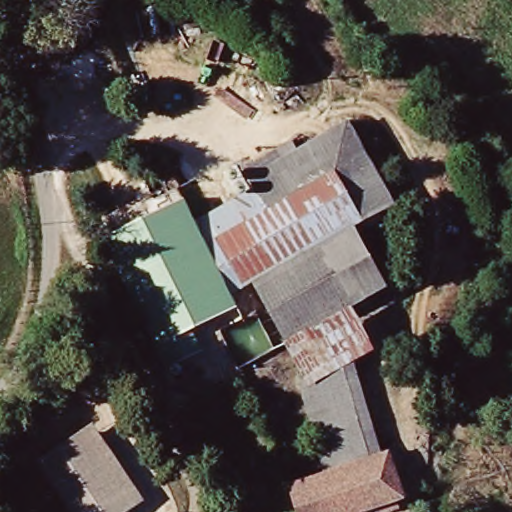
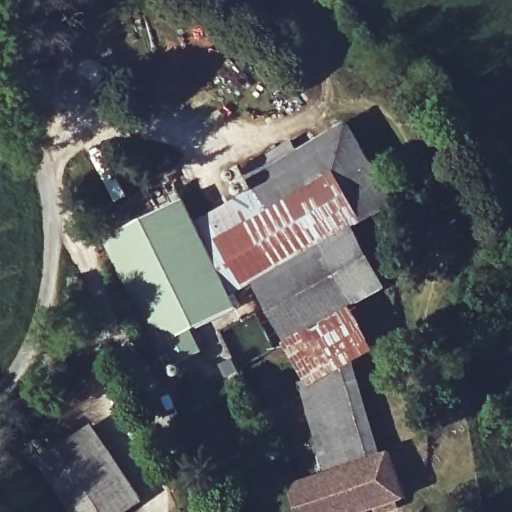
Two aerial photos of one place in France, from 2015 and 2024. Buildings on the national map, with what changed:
unchanged [(394,224),(322,260),(374,363),(304,397),(257,301),(241,310),(220,260),(231,253),(218,229),(270,205),(266,194),(357,151),(394,224)]
unchanged [(249,328),(168,363),(120,250),(201,216),(220,260),(241,310),(249,328)]
unchanged [(380,445),(324,469),(295,401),(350,380),(380,445)]
unchanged [(128,512),(61,512),(32,463),(98,424),(144,503),(128,512)]
unchanged [(332,490),(324,469),(380,445),(391,468),(332,490)]
unchanged [(393,512),(296,512),(293,504),(332,490),(391,468),(405,508),(393,512)]

